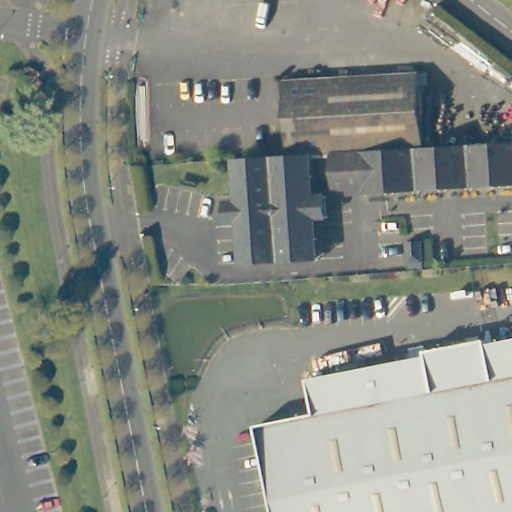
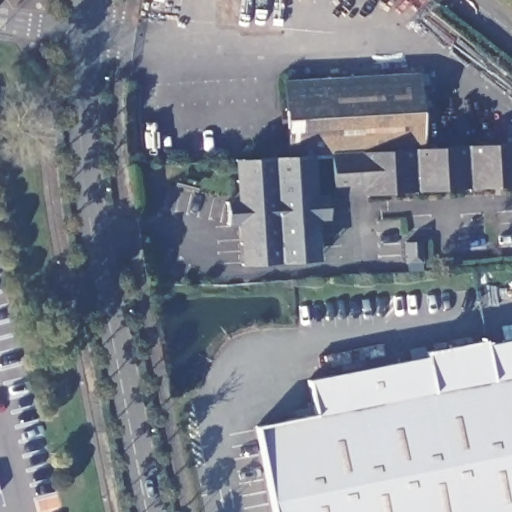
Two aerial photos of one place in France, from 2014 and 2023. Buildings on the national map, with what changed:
unchanged [(280,82),(415,75),(420,150),(321,155),(296,157),(284,157),(280,82)]
unchanged [(420,150),(440,149),(512,145),(512,181),(323,191),(321,155),(420,150)]
unchanged [(281,157),(284,157),(296,157),(301,262),(235,266),(230,160),(281,157)]
unchanged [(251,431),(310,420),(304,385),(420,362),(420,356),(481,343),(482,350),(512,344),(512,512),(268,512),(251,431)]

